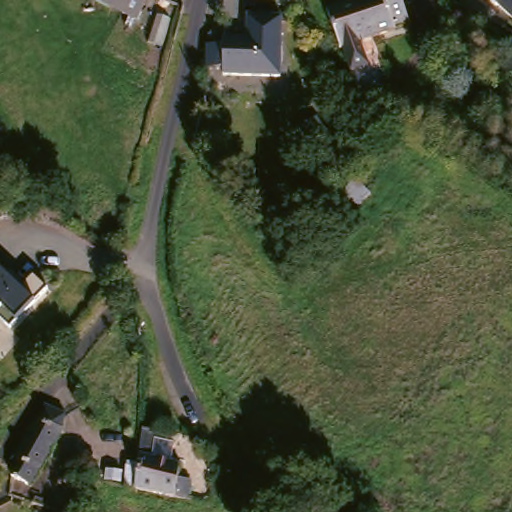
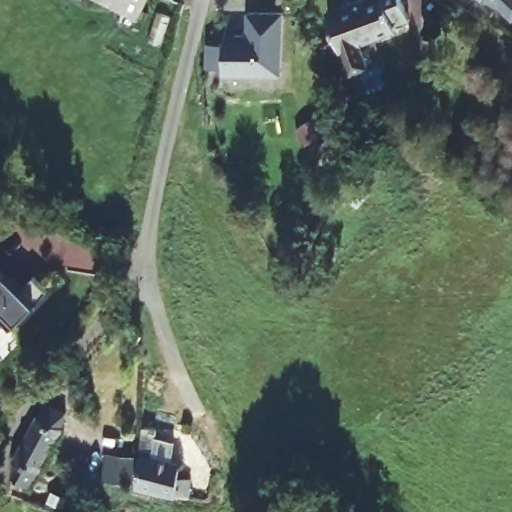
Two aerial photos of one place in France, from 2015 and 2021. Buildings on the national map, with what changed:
unchanged [(84,0),(145,0),(131,26),(84,0)]
unchanged [(278,0),(293,0),(278,2),(278,0)]
unchanged [(389,15),(391,19),(371,26),(374,36),(381,55),(350,65),(343,46),(340,37),(336,38),(323,0),(325,0),(400,0),(403,9),(389,15)]
unchanged [(493,0),(500,0),(497,4),(493,0)]
unchanged [(281,77),(223,75),(223,67),(206,67),(206,46),(223,45),(223,35),(246,35),(246,15),(281,16),(281,77)]
unchanged [(333,185),(296,127),(317,114),(354,171),(333,185)]
unchanged [(0,269),(4,273),(12,270),(23,281),(34,271),(47,286),(34,303),(11,327),(0,317),(0,269)]
unchanged [(33,468),(29,483),(8,476),(9,457),(33,415),(35,415),(41,403),(61,411),(56,425),(58,426),(36,469),(33,468)]
unchanged [(136,492),(144,432),(158,433),(153,461),(181,468),(179,480),(193,482),(190,502),(136,492)]

